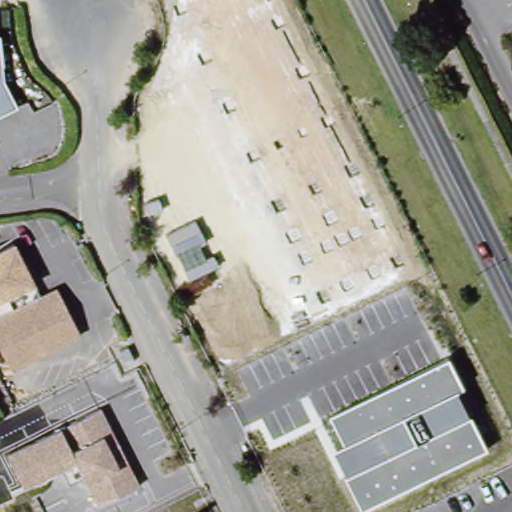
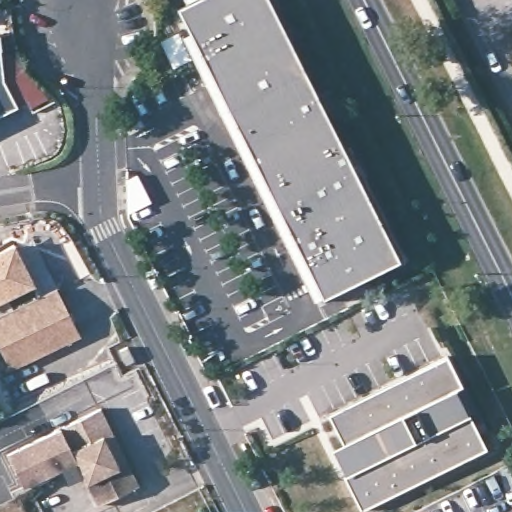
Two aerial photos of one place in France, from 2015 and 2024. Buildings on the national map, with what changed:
new [(324,296),(179,7),(194,0),(270,0),(399,258),(324,296)]
new [(177,32),(190,59),(172,67),(159,41),(177,32)]
unchanged [(4,82),(18,108),(0,118),(0,44),(2,59),(4,82)]
new [(2,59),(13,57),(20,74),(47,102),(31,109),(28,104),(18,108),(4,82),(2,59)]
unchanged [(0,256),(17,248),(39,295),(0,315),(0,256)]
unchanged [(0,315),(39,295),(57,286),(81,333),(11,368),(0,346),(0,315)]
unchanged [(127,350),(134,364),(125,369),(118,354),(127,350)]
unchanged [(447,356),(464,387),(457,390),(469,415),(486,448),(361,511),(345,477),(332,451),(344,444),(329,415),(447,356)]
unchanged [(74,465),(22,491),(6,458),(90,416),(99,412),(137,489),(128,493),(96,509),(74,465)]

